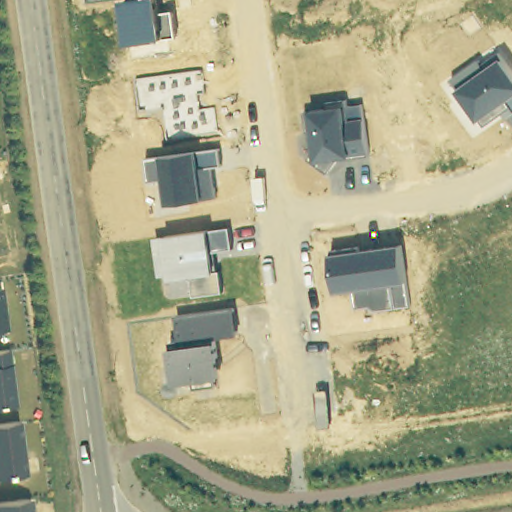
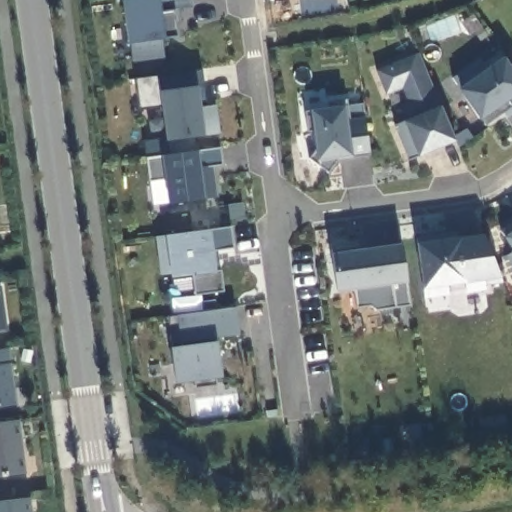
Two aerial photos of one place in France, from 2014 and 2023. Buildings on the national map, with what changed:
unchanged [(121,2),(136,0),(158,0),(160,14),(174,12),(177,38),(162,41),(126,44),(121,2)]
new [(417,53),(440,107),(455,143),(418,159),(410,162),(392,126),(402,123),(390,93),(385,95),(376,70),(417,53)]
unchanged [(482,67),(500,53),(512,72),(512,116),(508,119),(503,114),(485,127),(452,79),(478,60),(482,67)]
unchanged [(200,70),(204,93),(195,94),(197,111),(212,108),(215,131),(166,138),(161,108),(138,112),(134,79),(200,70)]
unchanged [(315,150),(312,130),(305,131),(304,114),(322,112),(322,104),(343,101),(343,108),(361,106),(368,157),(337,160),(327,174),(308,160),(315,150)]
unchanged [(216,151),(219,166),(210,167),(214,198),(200,201),(166,205),(164,180),(147,181),(145,160),(216,151)]
unchanged [(227,230),(230,250),(216,252),(221,293),(192,297),(189,277),(170,280),(169,275),(158,276),(153,239),(227,230)]
new [(512,231),(512,253),(501,239),(512,231)]
new [(460,238),(482,236),(502,282),(485,286),(486,292),(465,294),(464,284),(447,286),(449,295),(424,299),(422,288),(417,245),(460,238)]
unchanged [(400,245),(406,284),(407,307),(377,311),(370,307),(355,308),(351,291),(335,293),(328,254),(400,245)]
new [(512,254),(512,270),(505,259),(512,254)]
unchanged [(5,329),(0,329),(0,296),(5,329)]
unchanged [(170,344),(180,341),(176,318),(234,310),(237,336),(216,339),(217,345),(220,379),(212,380),(215,387),(192,390),(190,383),(174,385),(170,344)]
unchanged [(14,405),(0,407),(0,351),(6,351),(14,405)]
unchanged [(24,474),(0,477),(0,424),(17,422),(24,474)]
unchanged [(0,512),(0,502),(28,501),(29,512),(0,512)]

